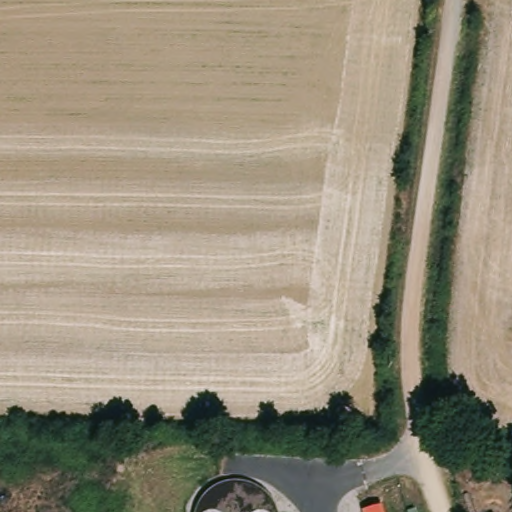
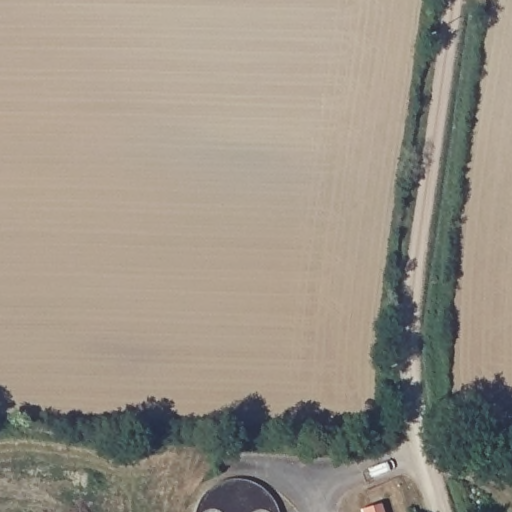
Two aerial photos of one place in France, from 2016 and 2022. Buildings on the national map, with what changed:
unchanged [(385,512),(365,512),(364,507),(383,503),(385,512)]

